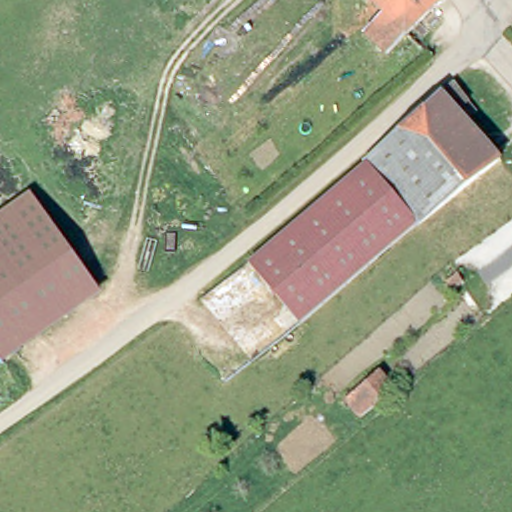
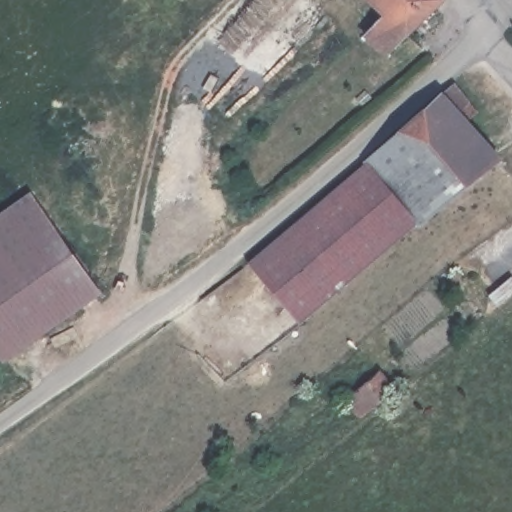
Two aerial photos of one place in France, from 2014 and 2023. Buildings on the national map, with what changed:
unchanged [(367,32),(388,11),(377,0),(439,0),(389,51),(367,32)]
unchanged [(366,157),(442,91),(453,81),(477,109),(468,118),(501,154),(417,222),(367,160),(366,157)]
unchanged [(417,222),(302,320),(252,260),(367,160),(417,222)]
unchanged [(1,359),(0,358),(0,209),(29,190),(99,290),(1,359)]
unchanged [(362,421),(346,399),(379,372),(397,393),(362,421)]

